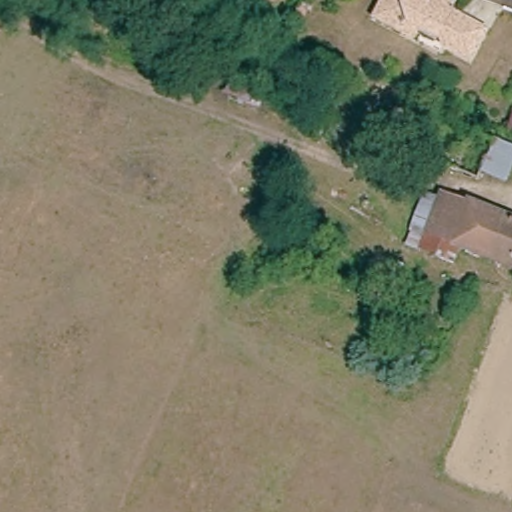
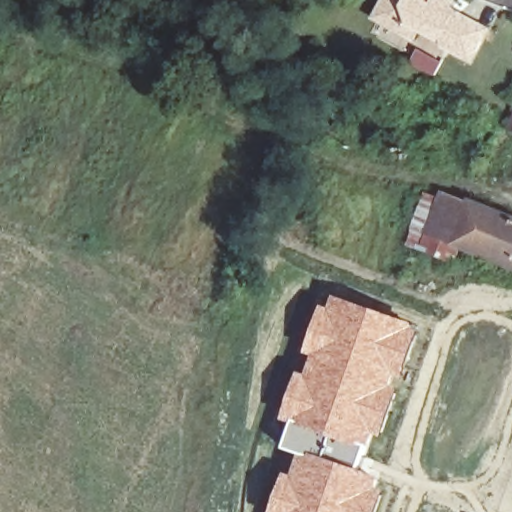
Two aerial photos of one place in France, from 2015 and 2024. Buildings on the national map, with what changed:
unchanged [(406,33),(379,18),(387,4),(389,0),(451,0),(454,1),(448,12),(486,31),(471,59),(444,45),(447,39),(425,27),(418,40),(406,33)]
demolished [(494,139),(512,146),(512,172),(507,183),(481,173),(494,139)]
unchanged [(469,205),(472,201),(512,218),(512,268),(459,247),(454,261),(420,246),(443,193),(469,205)]
new [(289,423),(280,419),(298,371),(304,373),(311,355),(304,353),(322,304),(329,306),(334,295),(421,326),(382,437),(377,435),(362,469),(322,458),(298,454),(280,448),(289,423)]
new [(290,474),(298,454),(322,458),(362,469),(381,476),(378,483),(384,485),(376,512),(269,512),(284,472),(290,474)]

